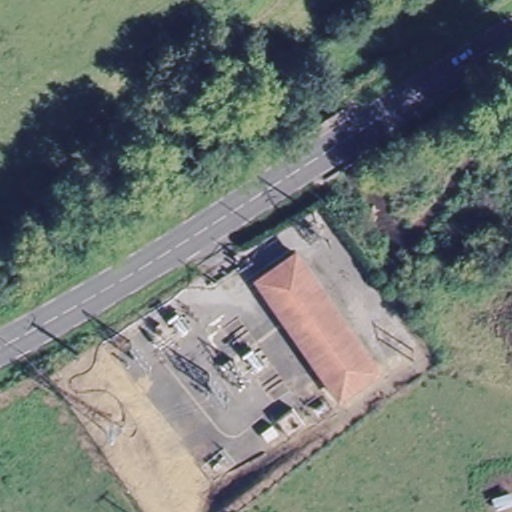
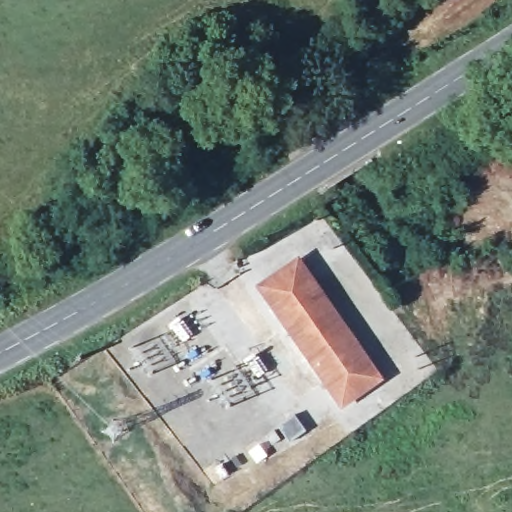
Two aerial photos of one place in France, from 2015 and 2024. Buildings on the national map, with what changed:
unchanged [(336,406),(252,285),(290,257),(375,378),(336,406)]

